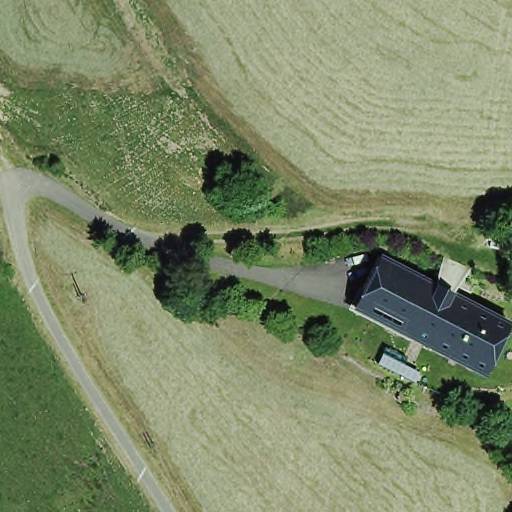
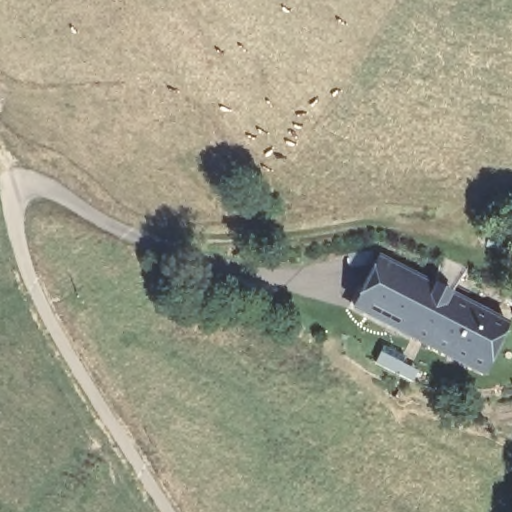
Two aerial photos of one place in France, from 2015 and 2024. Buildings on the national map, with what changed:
unchanged [(419,341),(351,306),(380,255),(448,289),(419,341)]
unchanged [(512,322),(485,375),(419,341),(448,289),(512,322)]

